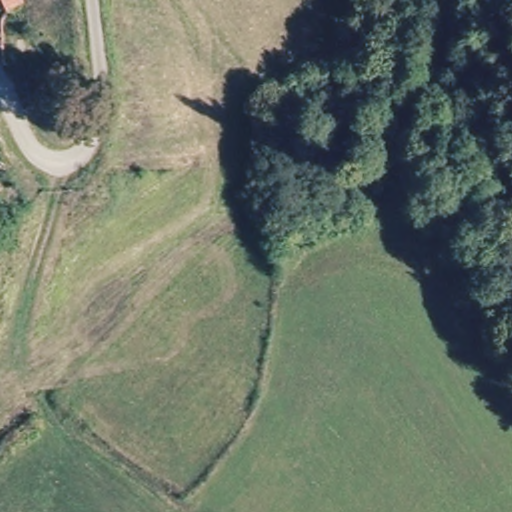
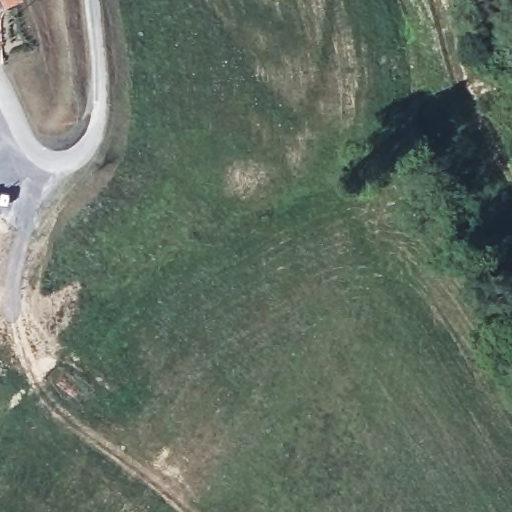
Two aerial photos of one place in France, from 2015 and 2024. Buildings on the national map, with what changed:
unchanged [(3,0),(22,0),(7,8),(3,0)]

